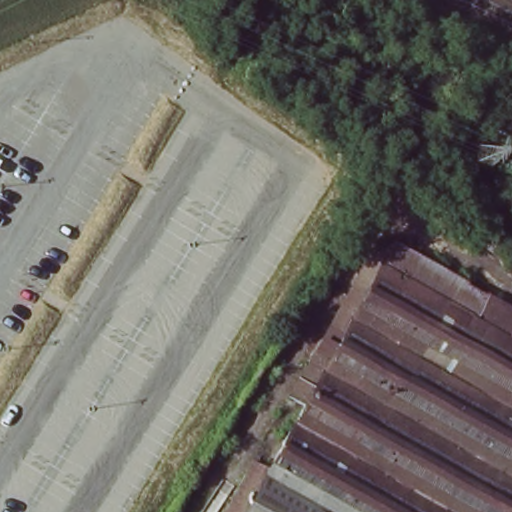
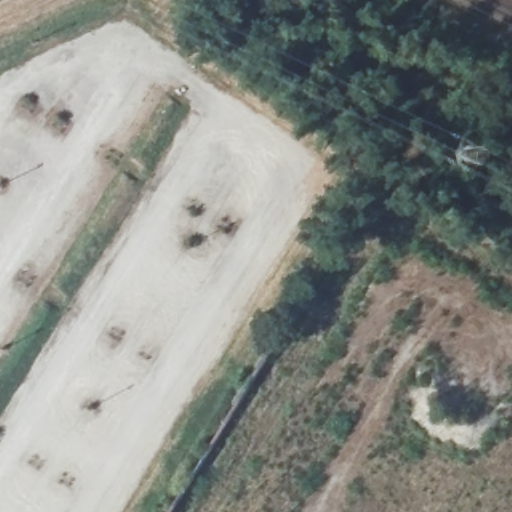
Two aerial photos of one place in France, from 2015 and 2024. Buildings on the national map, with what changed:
demolished [(278,431),(287,416),(274,408),(372,244),(384,251),(393,237),(486,293),(473,316),(512,341),(512,512),(213,512),(265,423),(278,431)]
demolished [(343,267),(312,318),(302,312),(334,261),(343,267)]

